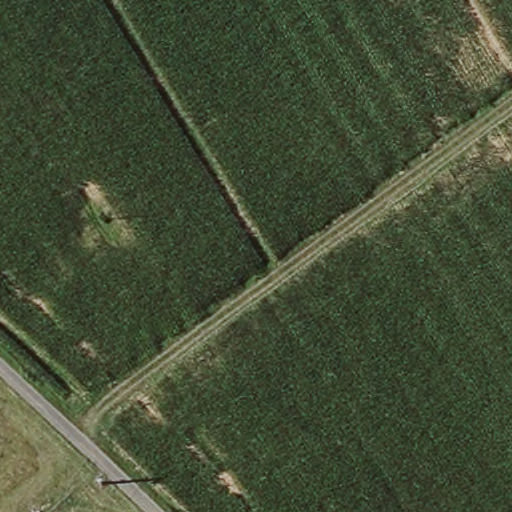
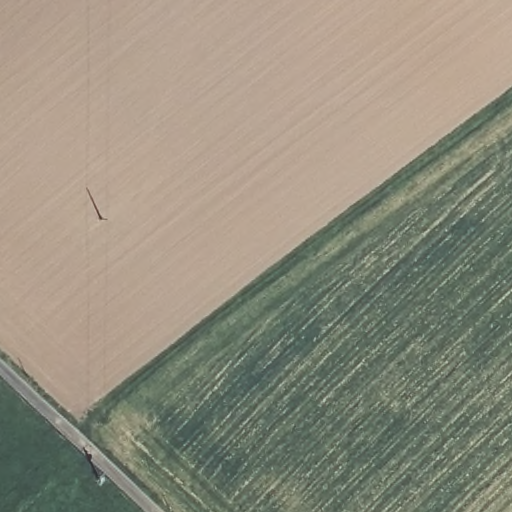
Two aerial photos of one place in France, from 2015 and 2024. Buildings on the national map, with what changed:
unchanged [(107,476),(116,485),(105,497),(95,488),(107,476)]

